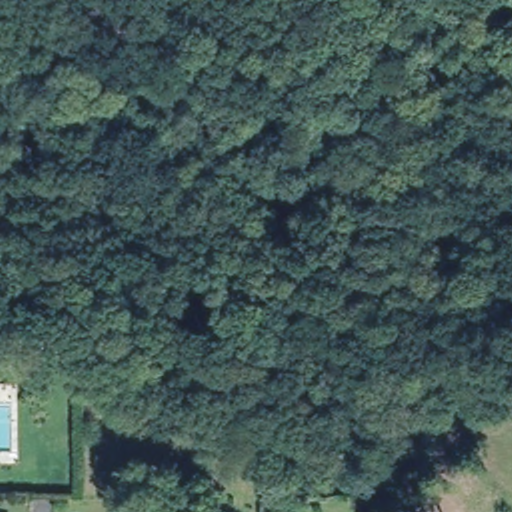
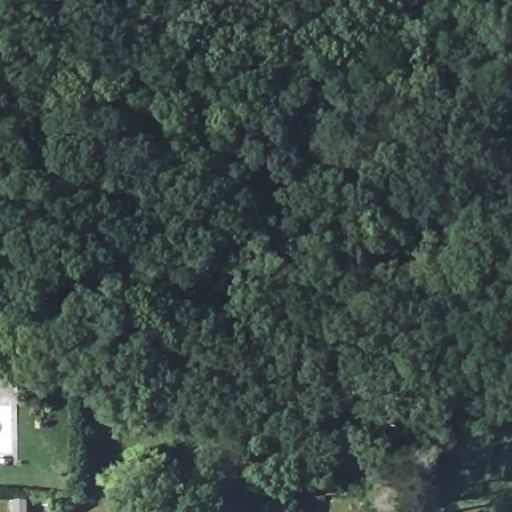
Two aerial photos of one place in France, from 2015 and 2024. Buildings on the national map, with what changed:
unchanged [(12,387),(12,400),(0,400),(0,387),(12,387)]

